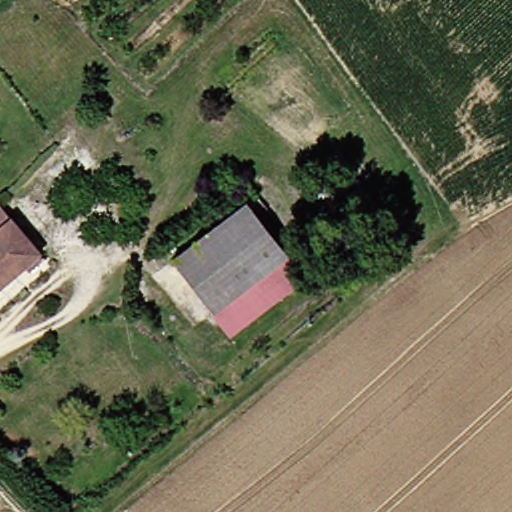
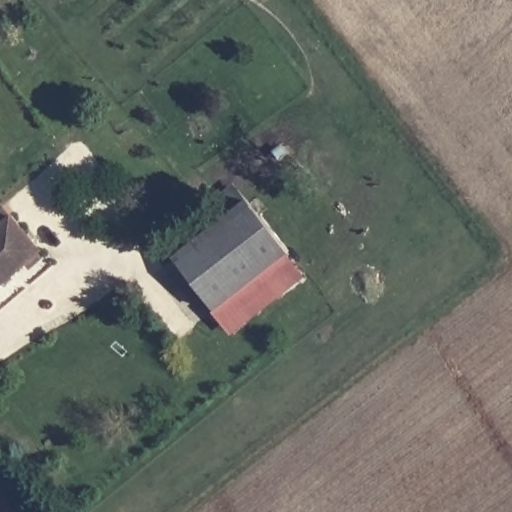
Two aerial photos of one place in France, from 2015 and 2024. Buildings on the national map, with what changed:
unchanged [(258,201),(298,254),(224,310),(184,257),(258,201)]
unchanged [(10,203),(21,217),(0,234),(0,211),(10,203)]
unchanged [(50,252),(0,292),(0,234),(21,217),(50,252)]
unchanged [(298,254),(316,277),(242,333),(224,310),(298,254)]

